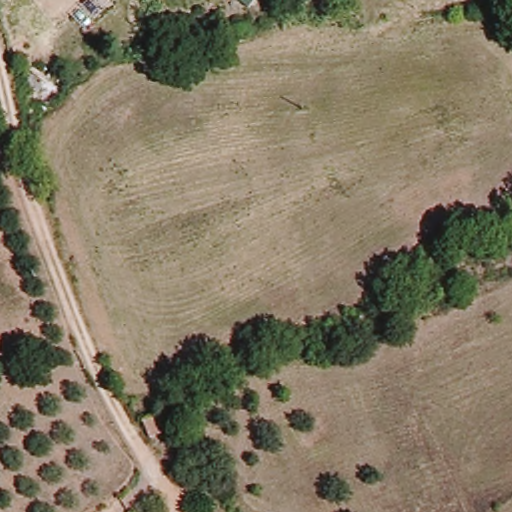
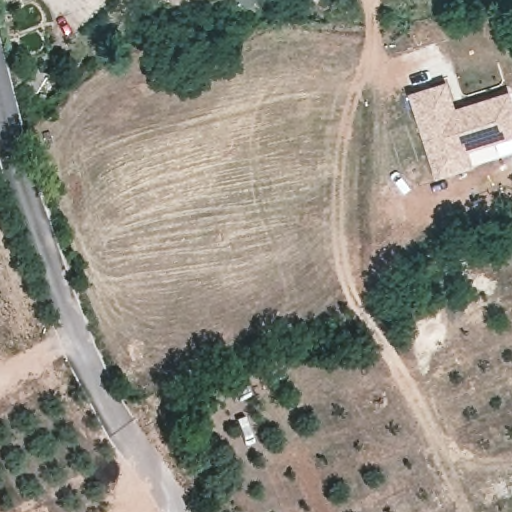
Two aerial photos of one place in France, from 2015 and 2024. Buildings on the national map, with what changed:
new [(454,105),(509,89),(512,101),(512,137),(467,150),(474,166),(435,179),(406,92),(445,79),(454,105)]
unchanged [(151,439),(144,422),(160,415),(167,432),(151,439)]

